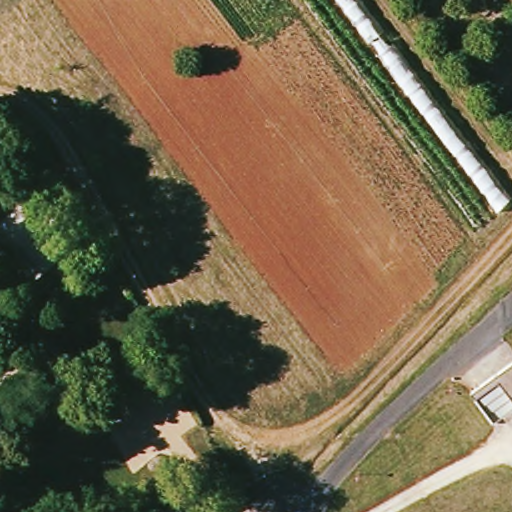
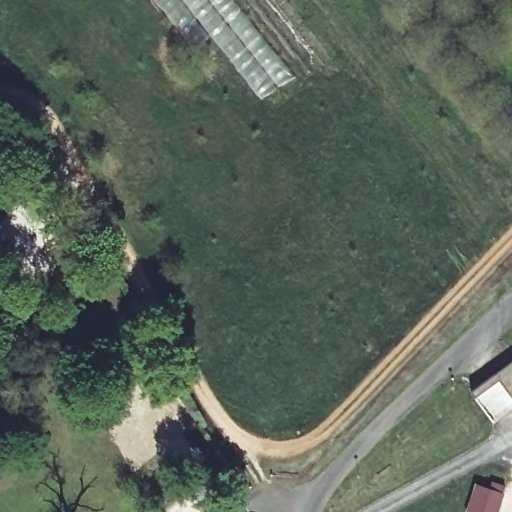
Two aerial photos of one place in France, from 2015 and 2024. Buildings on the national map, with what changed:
new [(294,76),(260,99),(197,23),(189,31),(195,38),(197,37),(200,40),(192,47),(155,0),(233,0),(294,76)]
unchanged [(512,362),(512,363),(512,405),(489,421),(467,394),(512,362)]
new [(505,493),(498,512),(472,512),(469,511),(477,484),(505,493)]

